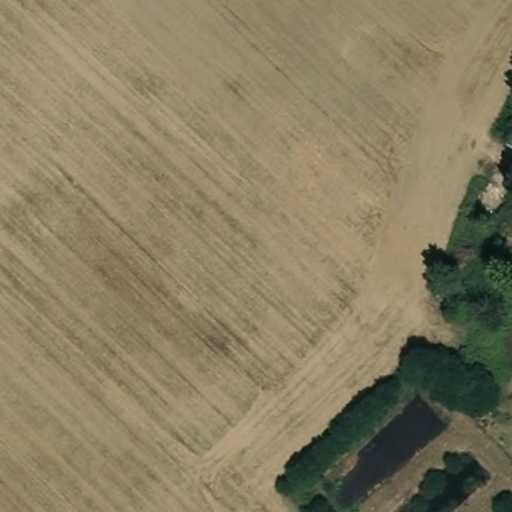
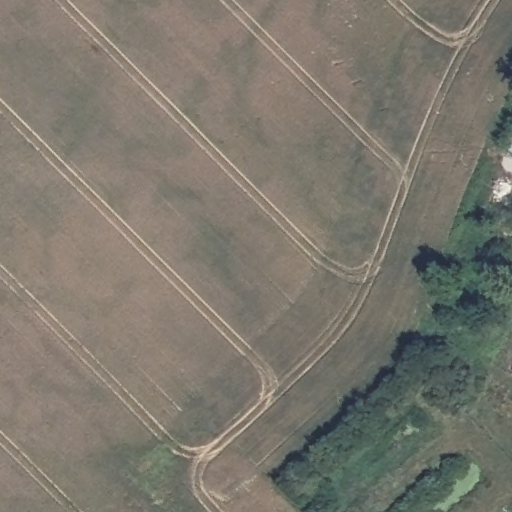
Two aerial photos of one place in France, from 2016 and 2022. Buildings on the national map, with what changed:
unchanged [(512,141),(512,147),(509,145),(512,141)]

